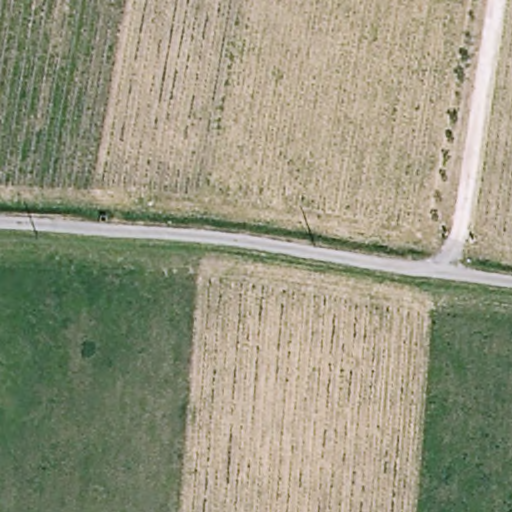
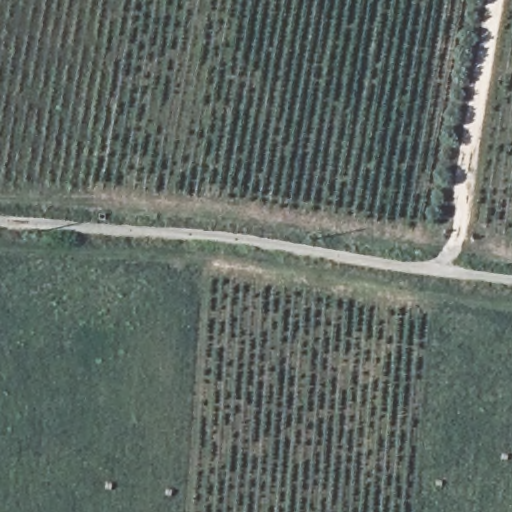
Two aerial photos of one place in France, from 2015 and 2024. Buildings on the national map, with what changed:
[]

